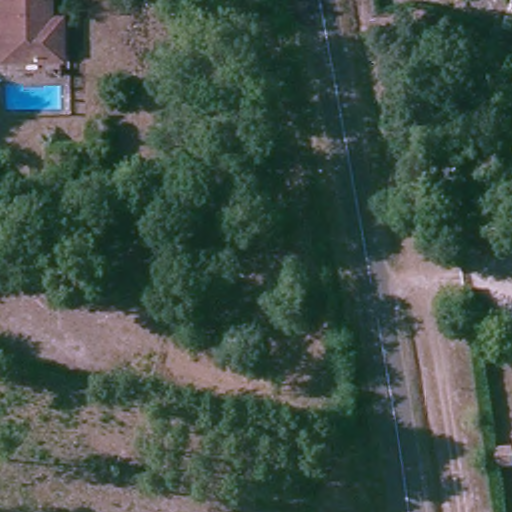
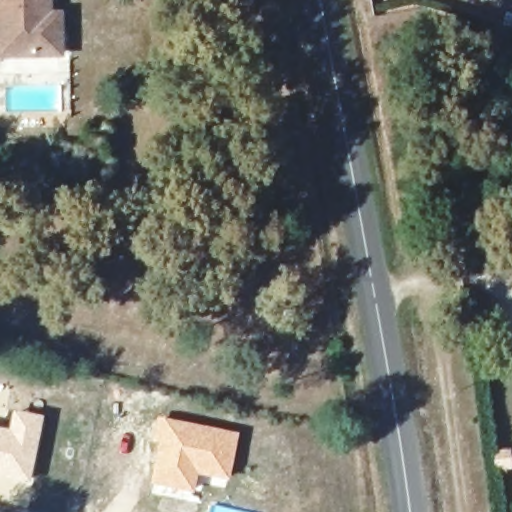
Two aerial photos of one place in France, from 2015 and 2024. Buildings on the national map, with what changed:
unchanged [(39,0),(39,31),(52,31),(52,61),(0,61),(0,0),(39,0)]
new [(11,436),(14,416),(39,421),(35,440),(27,482),(0,476),(0,433),(11,436)]
new [(159,416),(240,432),(229,481),(199,476),(195,492),(150,484),(159,416)]

